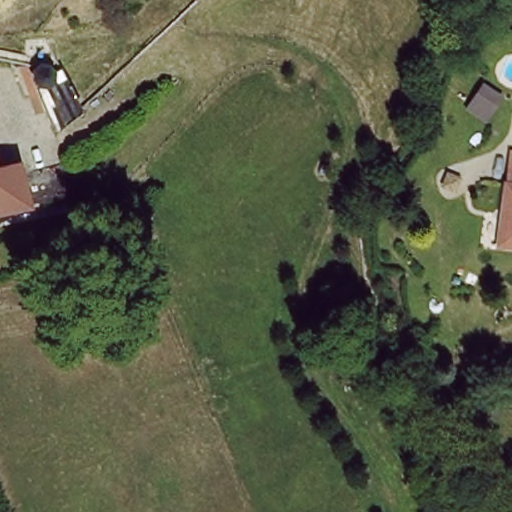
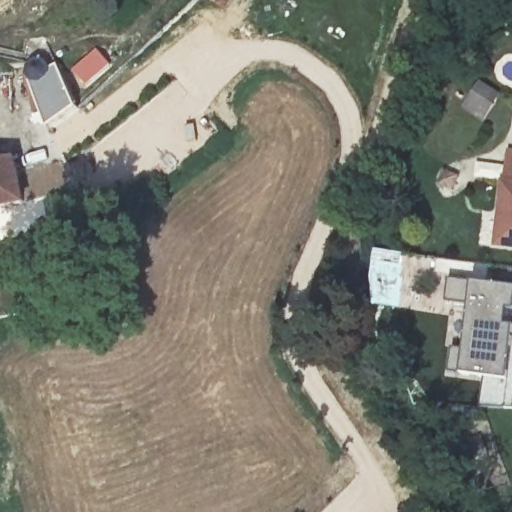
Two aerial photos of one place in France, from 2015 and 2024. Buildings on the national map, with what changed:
unchanged [(47,126),(28,81),(55,69),(76,109),(47,126)]
unchanged [(33,201),(0,210),(0,166),(23,161),(33,201)]
unchanged [(500,240),(512,161),(512,243),(500,240)]
new [(474,284),(512,289),(512,308),(509,307),(508,326),(512,327),(512,359),(509,379),(465,374),(451,372),(454,350),(466,350),(473,303),(447,301),(451,279),(474,284)]

